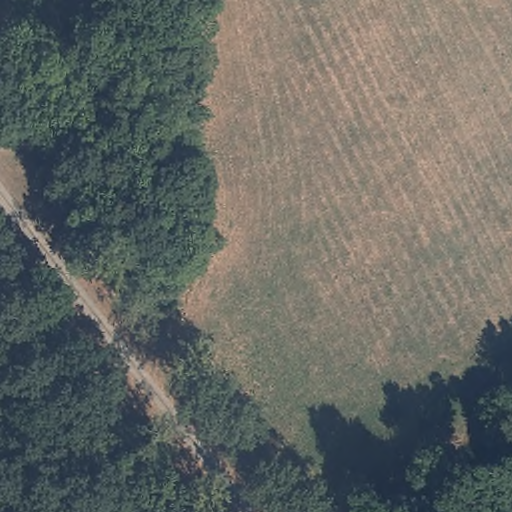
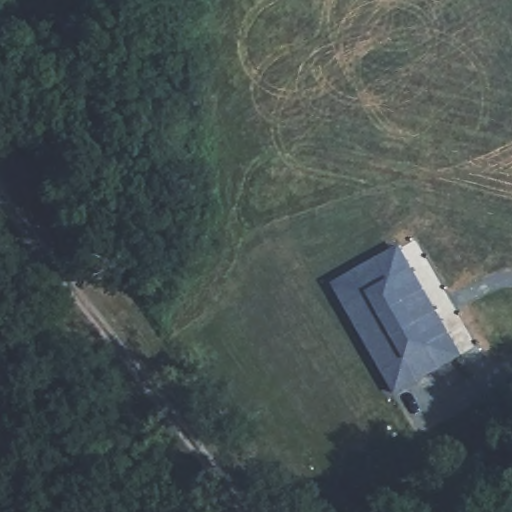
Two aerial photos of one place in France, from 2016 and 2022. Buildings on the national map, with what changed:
new [(398,244),(457,356),(393,393),(331,283),(398,244)]

